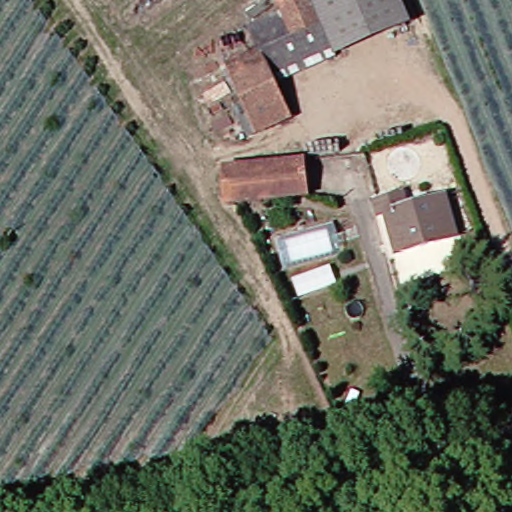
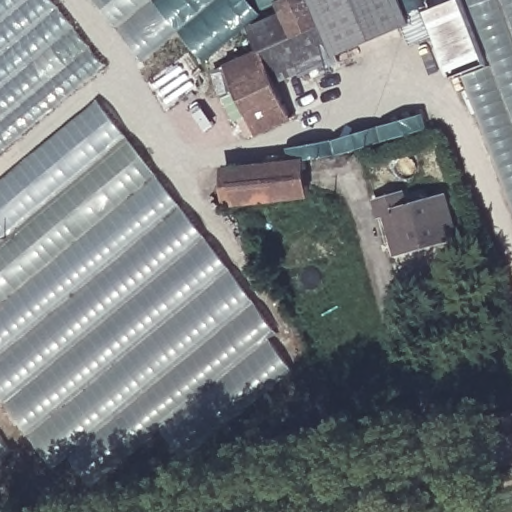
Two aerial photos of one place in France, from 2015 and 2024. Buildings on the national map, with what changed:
new [(0,151),(0,0),(52,0),(105,64),(0,151)]
new [(180,31),(146,60),(99,0),(253,0),(263,13),(206,60),(180,31)]
demolished [(131,0),(166,0),(142,16),(131,0)]
new [(258,134),(228,67),(259,52),(249,28),(283,14),(278,3),(285,0),(312,0),(335,56),(276,85),(293,120),(258,134)]
new [(335,56),(312,0),(403,0),(412,21),(335,56)]
new [(427,10),(454,0),(462,0),(484,57),(450,71),(427,10)]
new [(464,75),(494,64),(470,0),(512,0),(512,198),(464,75)]
demolished [(232,41),(299,7),(330,73),(264,107),(232,41)]
new [(277,333),(274,343),(293,370),(186,458),(152,418),(85,473),(69,453),(51,462),(0,395),(0,181),(99,102),(277,333)]
unchanged [(306,162),(311,198),(228,203),(226,171),(306,162)]
unchanged [(405,195),(409,206),(446,195),(458,237),(397,253),(388,218),(382,219),(378,203),(405,195)]
new [(0,460),(0,431),(14,449),(0,460)]

